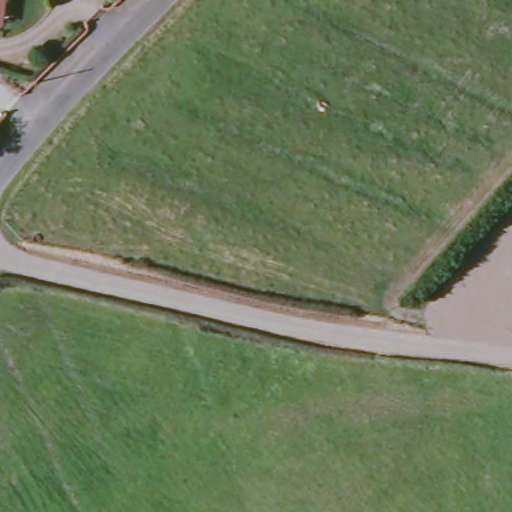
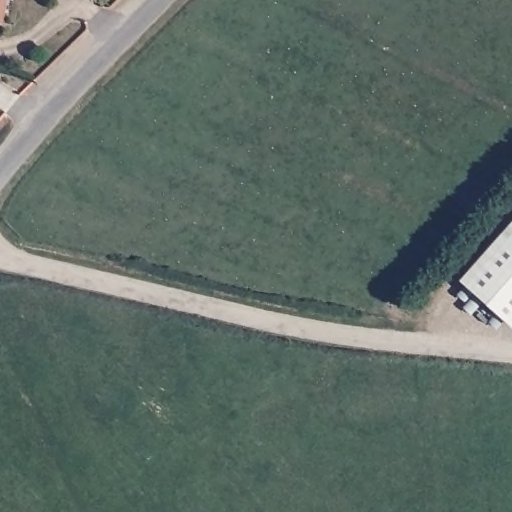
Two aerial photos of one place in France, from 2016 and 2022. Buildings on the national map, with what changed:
new [(460,279),(512,220),(512,327),(460,279)]

